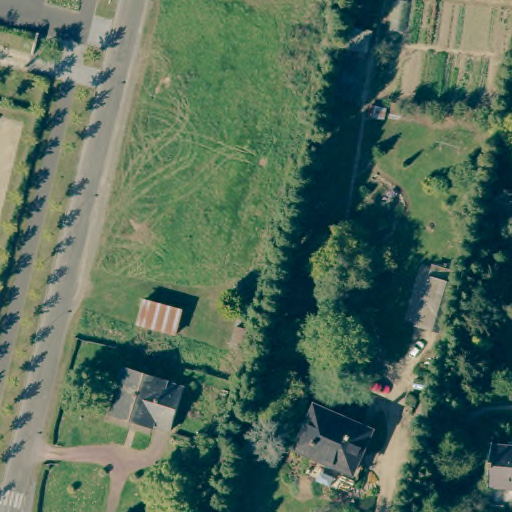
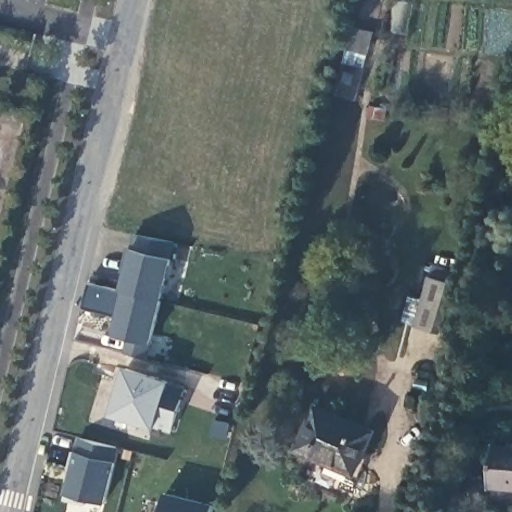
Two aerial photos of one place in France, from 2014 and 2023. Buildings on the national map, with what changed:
new [(172,261),(151,345),(147,361),(125,354),(131,340),(111,335),(116,317),(82,308),(89,281),(124,289),(133,248),(137,234),(180,244),(172,261)]
unchanged [(436,336),(410,328),(426,272),(451,277),(436,336)]
unchanged [(108,413),(121,371),(180,390),(166,432),(108,413)]
unchanged [(297,452),(316,410),(373,435),(355,473),(320,458),(317,462),(297,452)]
new [(118,463),(105,505),(89,501),(86,506),(62,499),(65,494),(60,493),(71,451),(79,452),(82,437),(122,447),(118,463)]
unchanged [(512,503),(482,500),(490,443),(512,445),(512,503)]
new [(212,512),(160,512),(165,492),(214,506),(212,512)]

